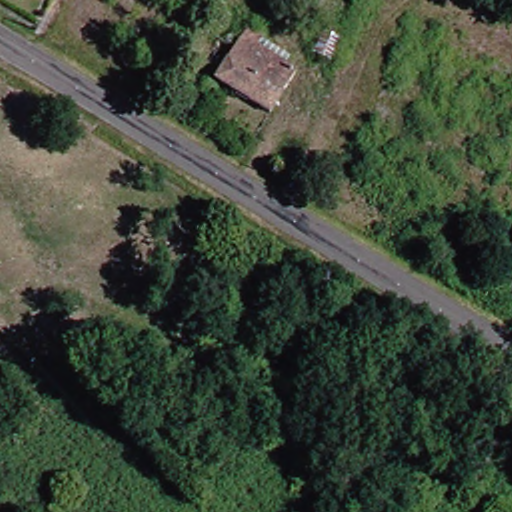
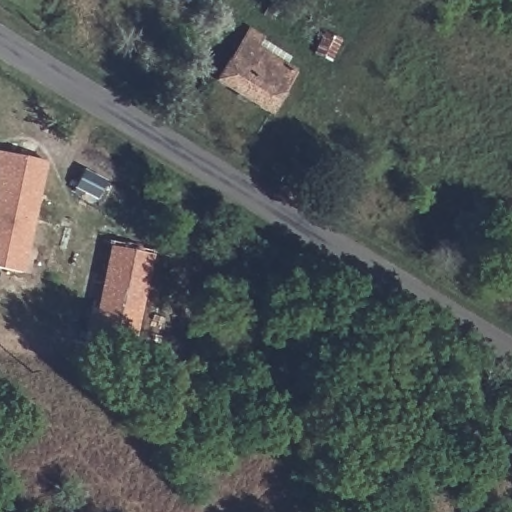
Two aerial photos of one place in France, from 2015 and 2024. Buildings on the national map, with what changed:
unchanged [(264,113),(210,79),(242,28),(257,37),(250,48),(290,72),(264,113)]
new [(23,272),(0,268),(0,152),(46,161),(23,272)]
new [(106,179),(96,199),(74,188),(85,168),(106,179)]
new [(135,342),(91,335),(109,246),(153,254),(135,342)]

